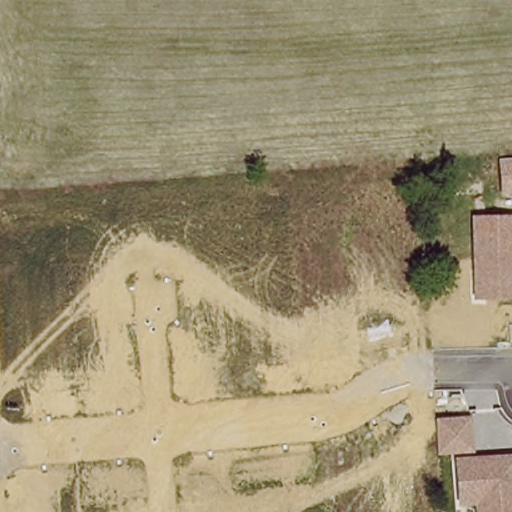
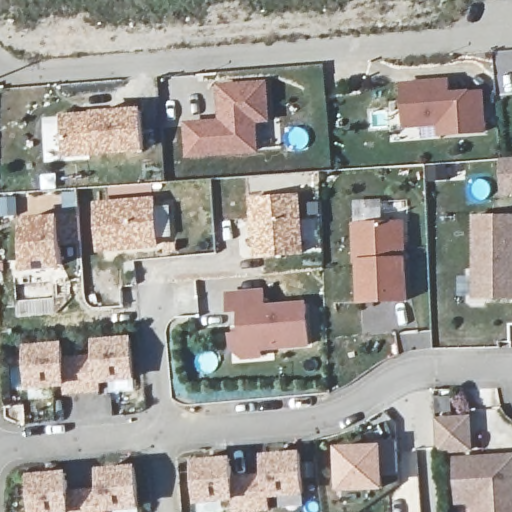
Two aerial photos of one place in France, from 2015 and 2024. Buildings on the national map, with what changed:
new [(447,79),(448,92),(485,89),(487,134),(438,138),(437,128),(402,130),(398,82),(447,79)]
new [(220,119),(217,86),(267,81),(270,123),(259,124),(260,153),(186,161),(184,123),(220,119)]
new [(92,112),(143,110),(145,155),(96,158),(62,160),(58,115),(92,112)]
unchanged [(512,157),(512,195),(503,195),(500,158),(512,157)]
new [(300,194),(305,257),(253,262),(248,199),(300,194)]
new [(152,198),(160,249),(97,254),(93,204),(152,198)]
new [(60,216),(79,214),(80,246),(62,246),(62,269),(24,272),(21,219),(60,216)]
unchanged [(512,215),(512,298),(474,298),(472,216),(512,215)]
new [(383,220),(384,226),(404,222),(406,258),(407,303),(358,305),(357,259),(355,224),(383,220)]
new [(263,289),(266,304),(305,301),(311,348),(260,352),(260,361),(241,362),(230,352),(228,335),(239,334),(237,313),(226,314),(225,293),(263,289)]
new [(63,343),(64,354),(92,351),(92,340),(130,337),(134,382),(135,392),(111,394),(111,385),(101,385),(102,393),(66,396),(65,387),(55,389),(56,398),(31,400),(31,391),(26,391),(22,346),(63,343)]
unchanged [(472,416),(474,451),(437,454),(434,419),(472,416)]
new [(383,444),(396,443),(397,476),(385,476),(384,492),(338,494),(336,447),(383,444)]
new [(233,474),(262,471),(262,456),(300,452),(303,495),(305,506),(282,509),(281,500),(270,500),(271,511),(267,512),(234,512),(235,504),(230,504),(230,512),(201,512),(200,506),(195,506),(192,461),(233,456),(233,474)]
unchanged [(512,512),(475,512),(474,505),(457,506),(453,458),(512,455),(512,512)]
new [(68,490),(98,486),(96,469),(135,465),(140,512),(30,512),(27,475),(67,471),(68,490)]

